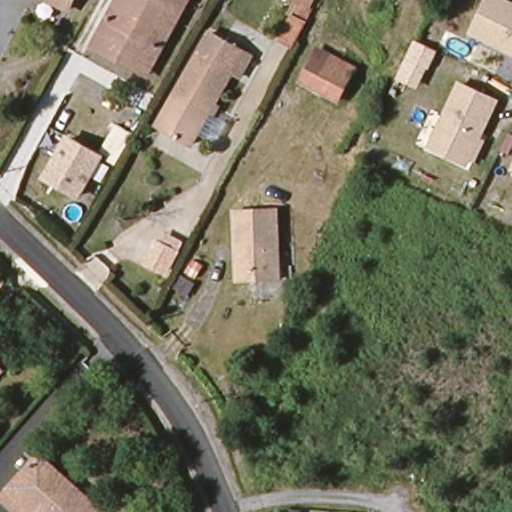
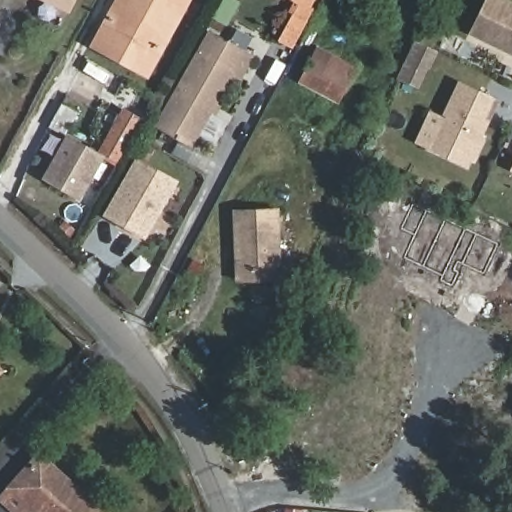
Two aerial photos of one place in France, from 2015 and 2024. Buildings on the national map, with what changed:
unchanged [(44,0),(74,0),(69,11),(44,0)]
unchanged [(94,46),(118,0),(192,0),(149,75),(94,46)]
unchanged [(297,23),(294,0),(317,0),(314,5),(320,9),(297,50),(285,44),(297,23)]
unchanged [(466,35),(482,0),(506,0),(512,3),(512,57),(466,35)]
unchanged [(254,59),(243,79),(234,75),(192,147),(155,128),(209,34),(254,59)]
new [(420,40),(437,49),(424,77),(420,85),(403,77),(407,69),(420,40)]
unchanged [(301,83),(314,60),(319,52),(356,71),(352,80),(339,102),(301,83)]
unchanged [(481,138),(486,141),(474,167),(425,145),(456,80),(499,100),(481,138)]
unchanged [(78,195),(49,179),(69,141),(98,157),(78,195)]
new [(144,240),(101,215),(135,156),(178,180),(144,240)]
unchanged [(509,171),(512,163),(512,173),(509,171)]
unchanged [(237,216),(278,215),(279,279),(238,281),(237,216)]
demolished [(154,274),(136,265),(148,242),(165,252),(154,274)]
unchanged [(0,376),(0,363),(5,370),(0,376)]
unchanged [(3,498),(13,485),(41,452),(104,508),(101,512),(18,512),(3,498)]

